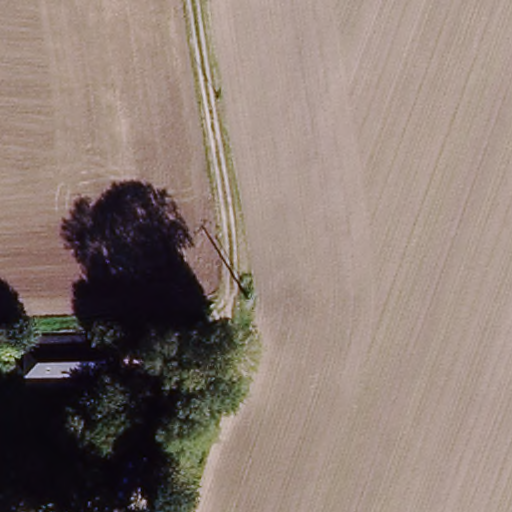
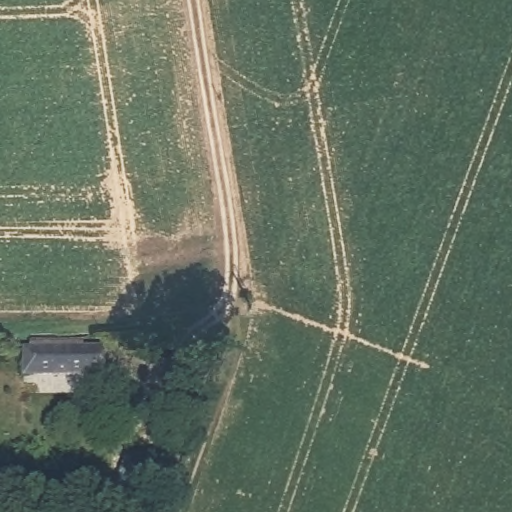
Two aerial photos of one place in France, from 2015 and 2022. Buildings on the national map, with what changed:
unchanged [(96,377),(28,376),(29,347),(36,347),(35,335),(62,336),(63,347),(97,348),(96,377)]
unchanged [(102,483),(115,440),(142,448),(130,491),(102,483)]

